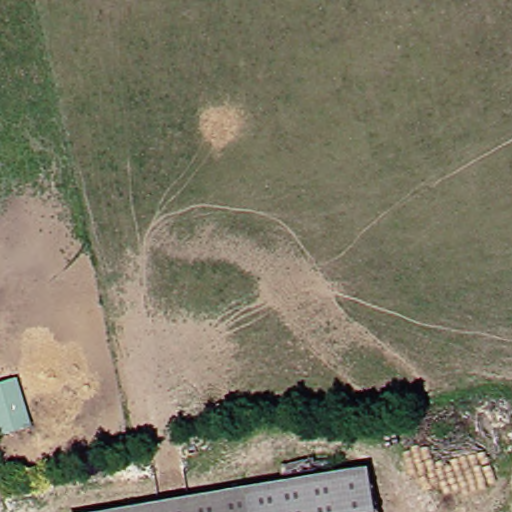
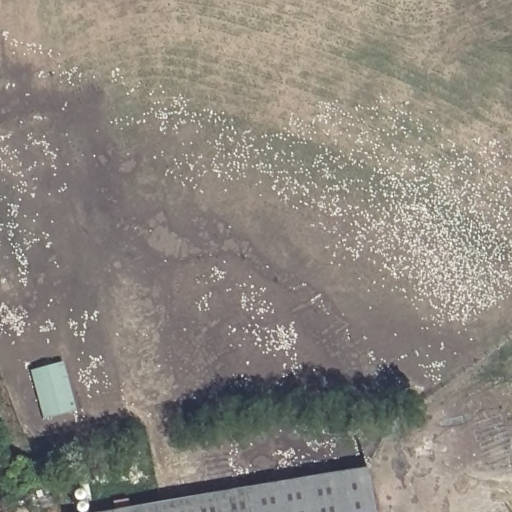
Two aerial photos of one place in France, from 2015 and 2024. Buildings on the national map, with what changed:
new [(30,374),(62,364),(77,412),(46,422),(30,374)]
unchanged [(105,512),(374,465),(382,512),(105,512)]

